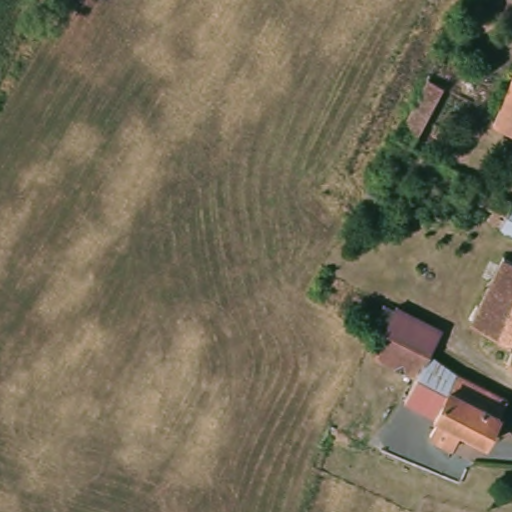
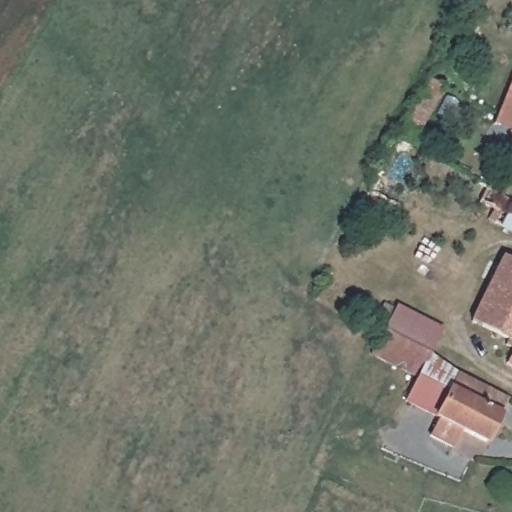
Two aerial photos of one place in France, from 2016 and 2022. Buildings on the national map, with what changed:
unchanged [(445,90),(413,150),(395,140),(427,79),(445,90)]
unchanged [(494,116),(512,80),(512,124),(494,116)]
unchanged [(492,222),(497,212),(485,205),(492,187),(512,197),(512,231),(492,222)]
unchanged [(504,339),(507,333),(474,317),(507,254),(512,256),(512,343),(504,339)]
unchanged [(456,445),(435,434),(442,416),(411,401),(422,378),(373,352),(385,329),(379,327),(394,300),(405,305),(453,328),(436,358),(512,398),(512,400),(489,442),(464,430),(456,445)]
unchanged [(512,350),(512,363),(507,361),(512,350)]

